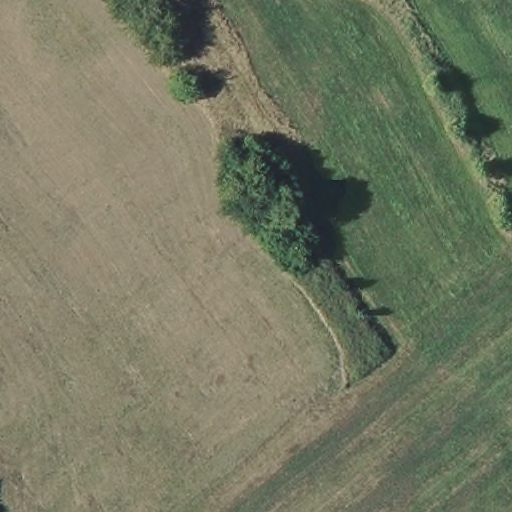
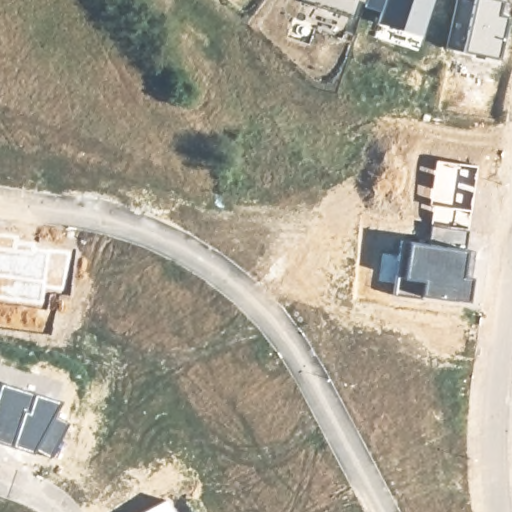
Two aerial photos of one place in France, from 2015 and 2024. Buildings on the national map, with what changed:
new [(357,5),(353,17),(304,0),(407,0),(397,29),(377,21),(380,14),(362,6),(357,5)]
new [(432,0),(419,36),(397,29),(407,0),(432,0)]
new [(499,0),(502,1),(499,12),(506,14),(496,60),(444,47),(455,0),(499,0)]
new [(417,183),(430,186),(435,159),(477,165),(472,210),(430,203),(431,199),(416,195),(417,183)]
new [(430,203),(472,210),(465,249),(426,242),(430,203)]
new [(383,253),(404,255),(406,240),(426,242),(465,249),(461,276),(469,277),(465,302),(418,295),(421,283),(398,279),(399,267),(392,266),(392,262),(382,260),(383,253)]
new [(10,244),(73,250),(64,293),(45,290),(43,305),(0,298),(0,245),(9,247),(10,244)]
new [(34,449),(32,452),(0,441),(0,383),(57,401),(52,415),(69,424),(52,458),(34,449)]
new [(167,497),(175,512),(138,512),(167,497)]

